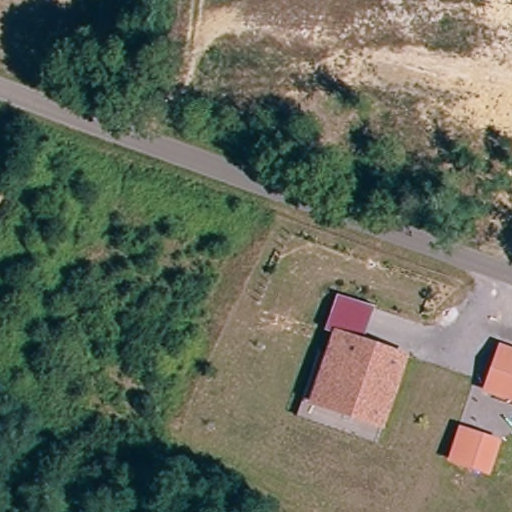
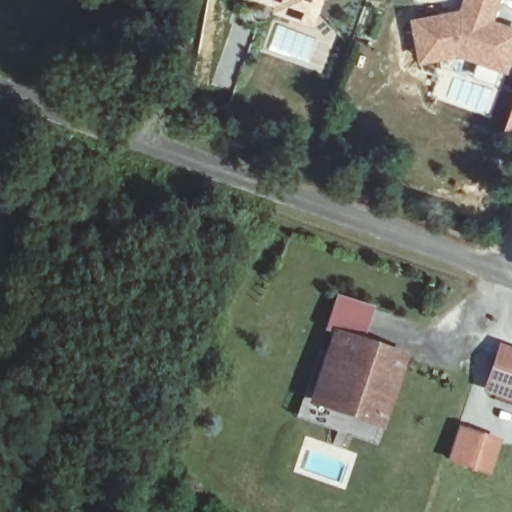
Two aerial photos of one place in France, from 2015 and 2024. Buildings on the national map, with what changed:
new [(272,5),(258,0),(323,0),(313,27),(271,11),(272,5)]
new [(493,84),(472,76),(477,64),(456,56),(416,63),(409,19),(457,9),(461,0),(501,0),(494,21),(512,27),(512,59),(507,74),(498,71),(493,84)]
new [(512,151),(497,144),(512,102),(512,151)]
unchanged [(337,336),(336,339),(323,333),(337,293),(376,305),(360,344),(337,336)]
unchanged [(329,357),(337,336),(401,360),(376,424),(324,404),(312,400),(329,357)]
unchanged [(506,352),(512,354),(512,394),(492,387),(506,352)]
unchanged [(459,425),(502,439),(489,476),(447,462),(459,425)]

